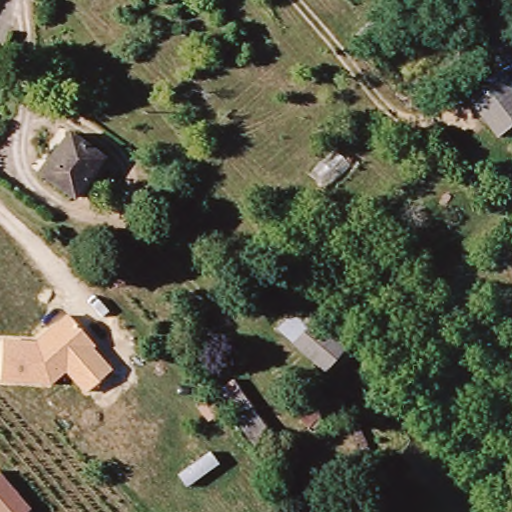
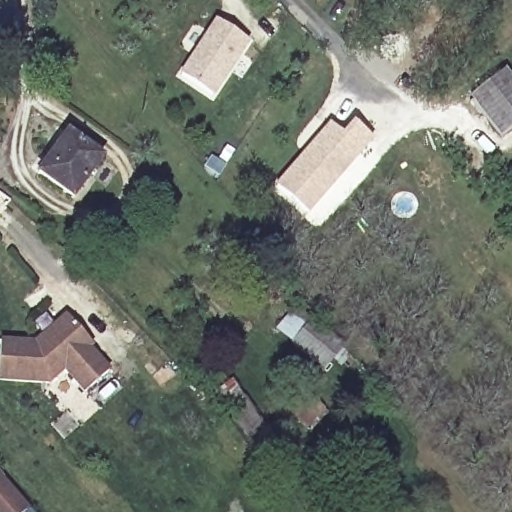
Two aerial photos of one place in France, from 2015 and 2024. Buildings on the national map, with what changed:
new [(250,42),(214,97),(179,74),(214,21),(250,42)]
unchanged [(505,72),(512,80),(512,131),(503,139),(472,99),(505,72)]
new [(342,137),(353,125),(369,140),(305,214),(275,187),(328,127),(342,137)]
unchanged [(76,196),(42,172),(70,134),(104,159),(76,196)]
unchanged [(324,385),(275,320),(297,303),(346,368),(324,385)]
unchanged [(95,345),(92,348),(111,369),(85,393),(65,372),(50,383),(0,380),(0,364),(2,339),(35,341),(66,314),(95,345)]
unchanged [(226,387),(268,432),(257,443),(214,398),(226,387)]
unchanged [(319,446),(338,432),(355,455),(335,468),(319,446)]
unchanged [(32,508),(27,512),(0,512),(0,472),(32,508)]

